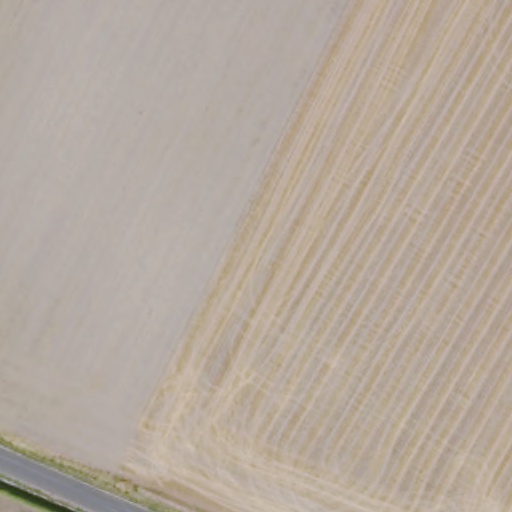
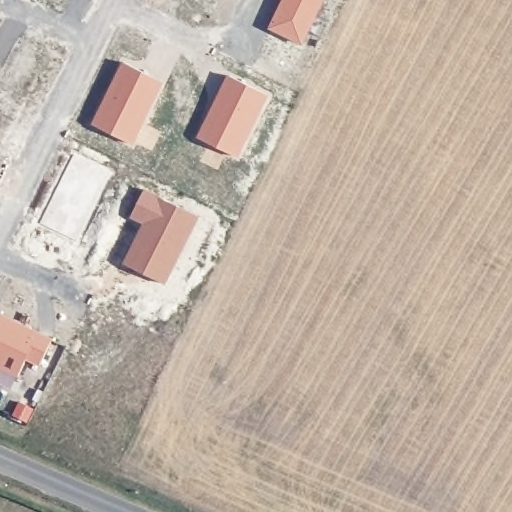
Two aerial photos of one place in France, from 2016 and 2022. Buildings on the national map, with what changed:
new [(269,32),(281,1),(280,0),(324,0),(302,47),(269,32)]
new [(132,147),(90,127),(122,65),(162,84),(132,147)]
new [(237,160),(195,140),(229,76),(269,96),(237,160)]
new [(80,242),(42,224),(76,157),(112,174),(80,242)]
new [(165,286),(122,267),(142,227),(130,222),(145,192),(200,220),(165,286)]
new [(38,369),(25,362),(17,380),(0,371),(0,315),(52,340),(38,369)]

